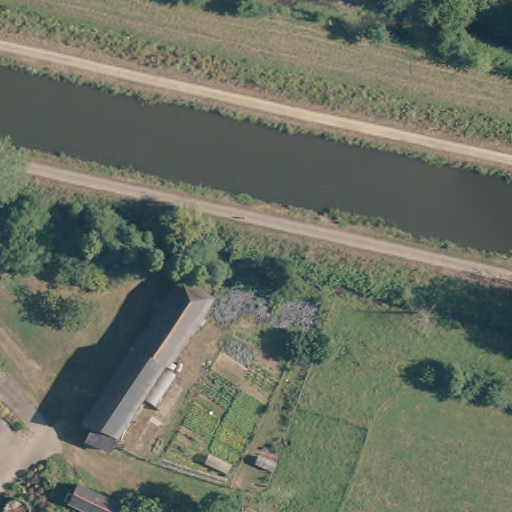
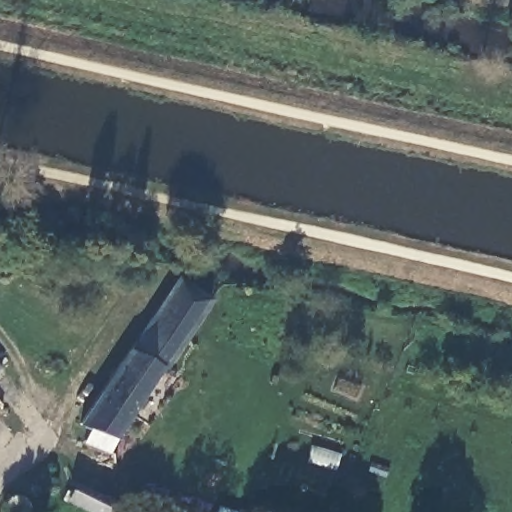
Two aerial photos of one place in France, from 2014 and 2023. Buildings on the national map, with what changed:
unchanged [(202,320),(179,354),(170,366),(169,368),(165,365),(153,383),(119,432),(104,455),(102,458),(78,440),(86,426),(79,422),(146,321),(181,272),(220,293),(202,320)]
unchanged [(13,373),(0,383),(0,354),(13,373)]
unchanged [(86,512),(68,503),(76,486),(83,480),(119,500),(112,512),(86,512)]

